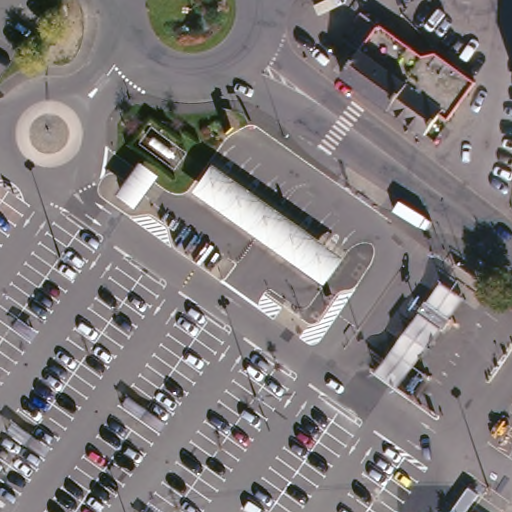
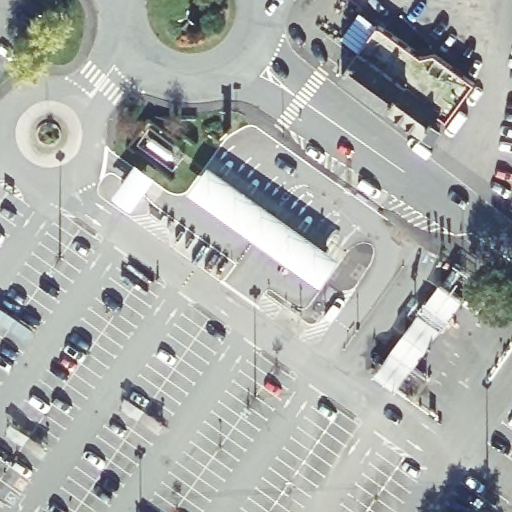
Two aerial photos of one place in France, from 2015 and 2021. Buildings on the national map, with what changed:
unchanged [(441,125),(431,119),(416,143),(334,83),(370,30),(419,63),(429,58),(468,87),(461,96),(454,106),(441,125)]
unchanged [(208,169),(341,264),(323,291),(189,196),(208,169)]
unchanged [(139,170),(154,182),(131,212),(116,200),(139,170)]
unchanged [(440,286),(462,303),(396,391),(374,374),(440,286)]

